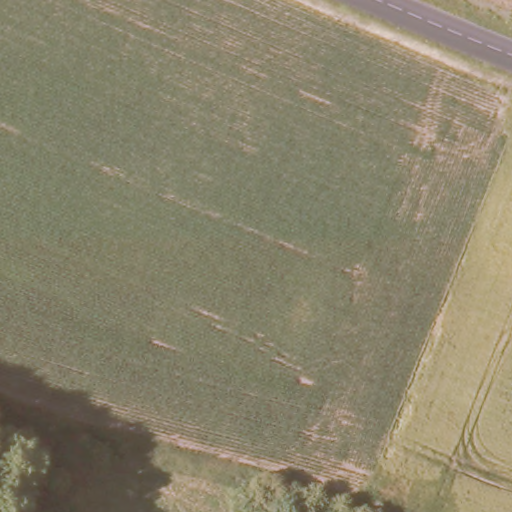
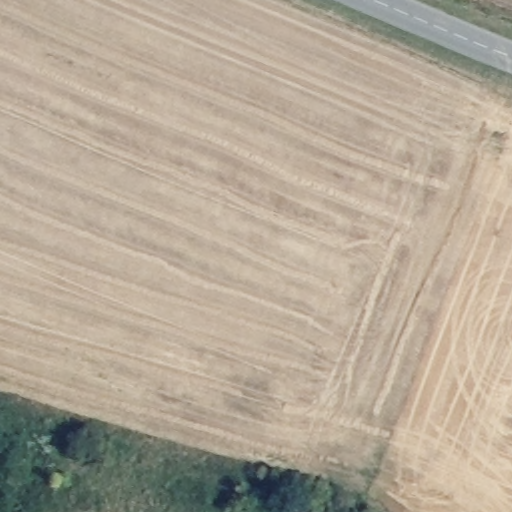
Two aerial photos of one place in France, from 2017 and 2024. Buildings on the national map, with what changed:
unchanged [(294,512),(287,512),(288,510),(294,512)]

